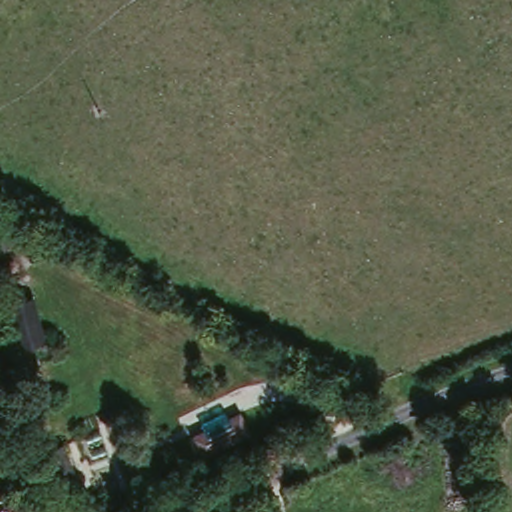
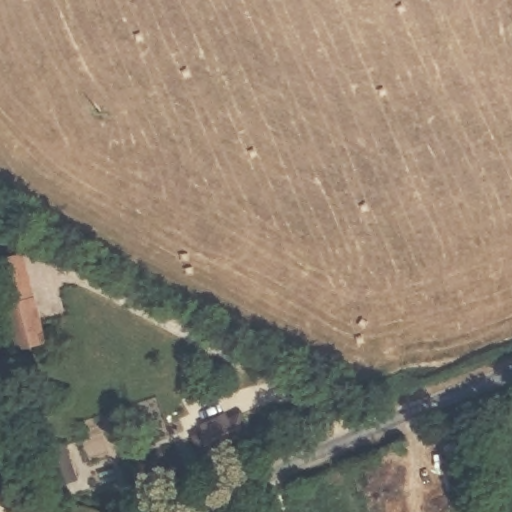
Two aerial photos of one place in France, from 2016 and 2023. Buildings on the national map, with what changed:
unchanged [(242,413),(251,434),(203,455),(194,432),(242,413)]

